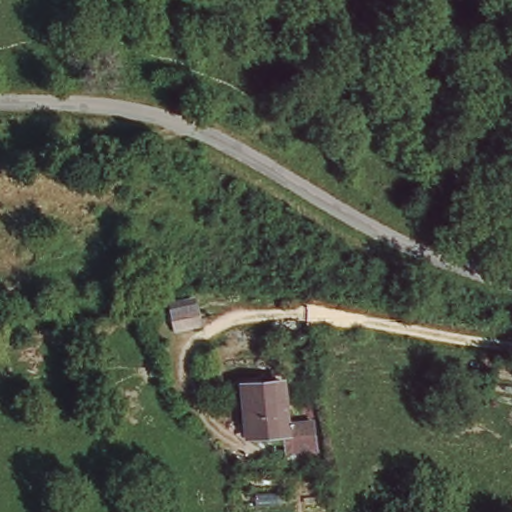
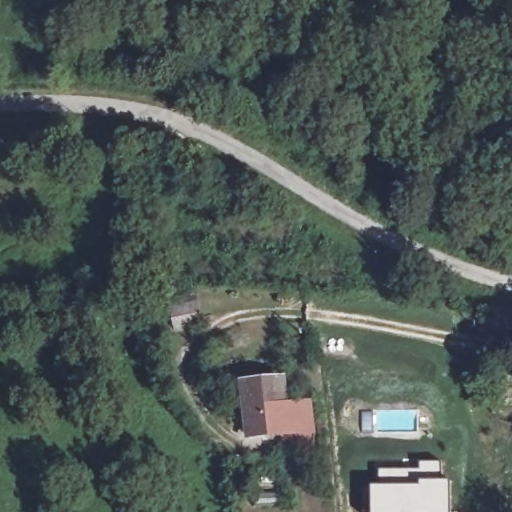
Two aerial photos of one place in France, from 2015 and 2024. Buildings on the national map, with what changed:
unchanged [(251,381),(287,377),(292,421),(317,419),(320,442),(292,446),(290,428),(256,432),(251,381)]
new [(420,471),(420,463),(447,465),(445,482),(450,483),(450,512),(371,512),(372,486),(379,486),(380,472),(420,471)]

